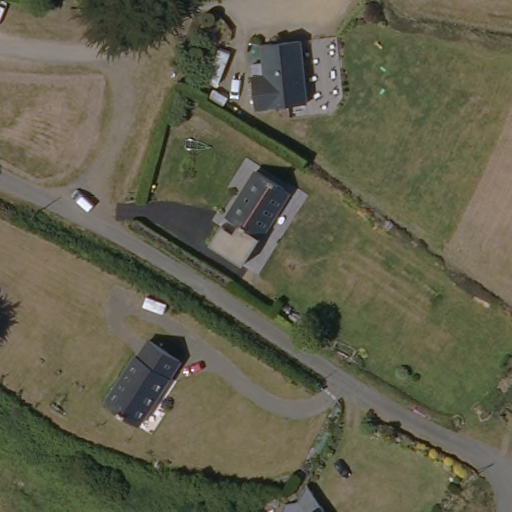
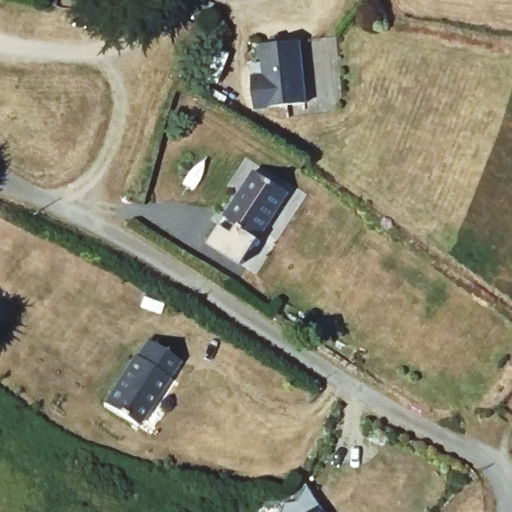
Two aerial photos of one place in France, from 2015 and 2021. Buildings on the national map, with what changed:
unchanged [(67,12),(53,9),(54,0),(68,0),(67,12)]
unchanged [(298,108),(247,106),(249,74),(252,74),(252,62),(264,62),(264,44),(301,45),(298,108)]
unchanged [(286,181),(264,231),(261,230),(257,238),(260,239),(252,258),(214,242),(224,222),(227,224),(231,216),(227,214),(249,164),(286,181)]
unchanged [(108,401),(134,351),(139,354),(148,337),(179,353),(143,420),(108,401)]
unchanged [(301,512),(312,491),(327,512),(301,512)]

